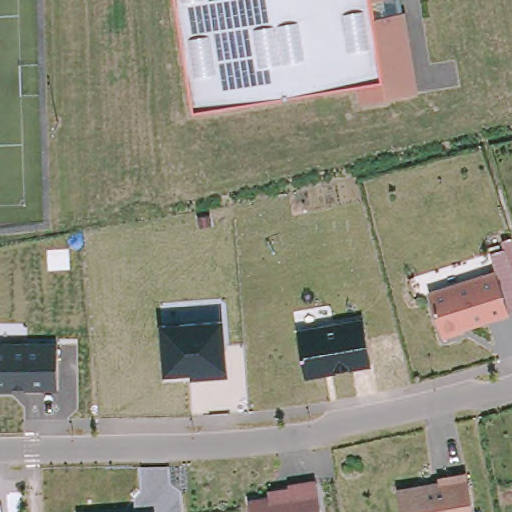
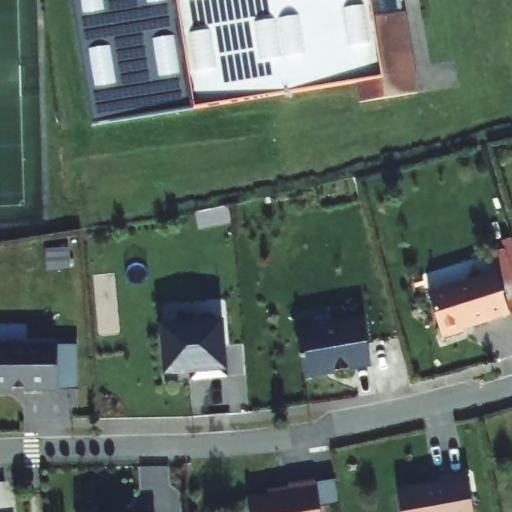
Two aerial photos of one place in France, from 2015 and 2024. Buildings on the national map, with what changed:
new [(72,0),(176,0),(194,110),(92,126),(72,0)]
unchanged [(404,12),(417,92),(359,104),(355,83),(194,110),(176,0),(400,0),(402,12),(404,12)]
unchanged [(427,289),(495,267),(508,308),(462,323),(464,326),(442,332),(427,289)]
unchanged [(370,368),(305,380),(297,332),(362,320),(370,368)]
unchanged [(190,374),(164,376),(160,325),(224,321),(228,372),(229,380),(190,382),(190,374)]
unchanged [(0,391),(0,343),(57,343),(57,391),(0,391)]
unchanged [(394,485),(430,477),(430,481),(436,479),(434,472),(462,465),(473,512),(400,512),(394,485)]
unchanged [(247,495),(289,488),(287,480),(315,476),(320,512),(249,512),(247,495)]

